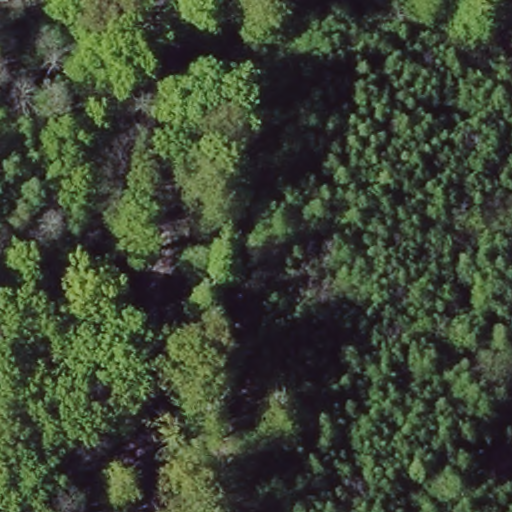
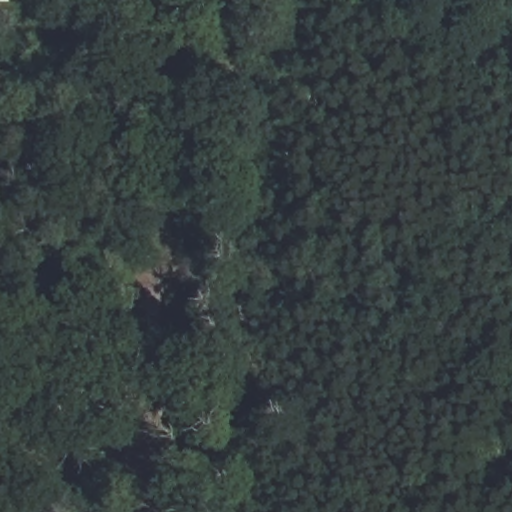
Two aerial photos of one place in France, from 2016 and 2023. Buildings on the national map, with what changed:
[]

